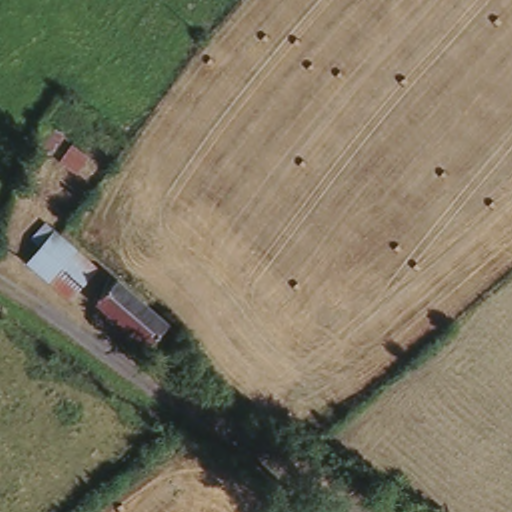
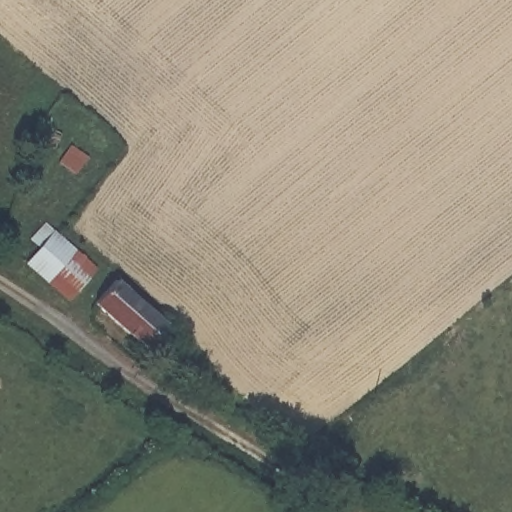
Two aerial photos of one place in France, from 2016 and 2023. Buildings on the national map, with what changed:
unchanged [(64,136),(54,155),(34,148),(44,127),(64,136)]
unchanged [(90,155),(77,173),(61,163),(73,143),(90,155)]
unchanged [(96,265),(70,296),(28,262),(42,246),(30,237),(45,221),(96,265)]
unchanged [(150,347),(96,300),(121,278),(173,323),(156,339),(150,347)]

